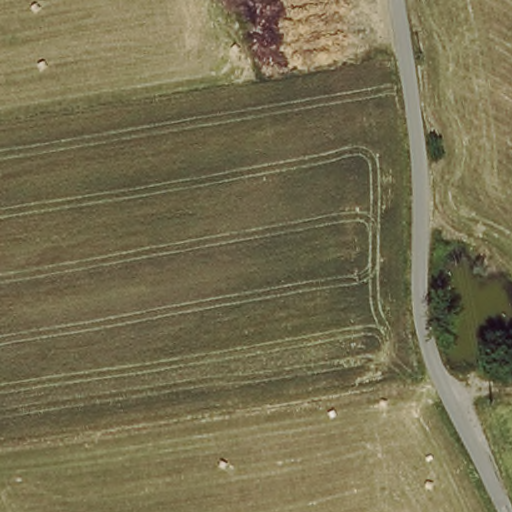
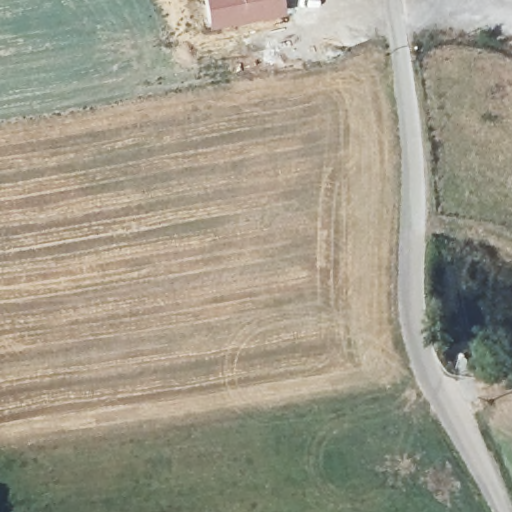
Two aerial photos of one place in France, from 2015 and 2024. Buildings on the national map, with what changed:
new [(285,12),(209,27),(202,0),(283,0),(285,12)]

